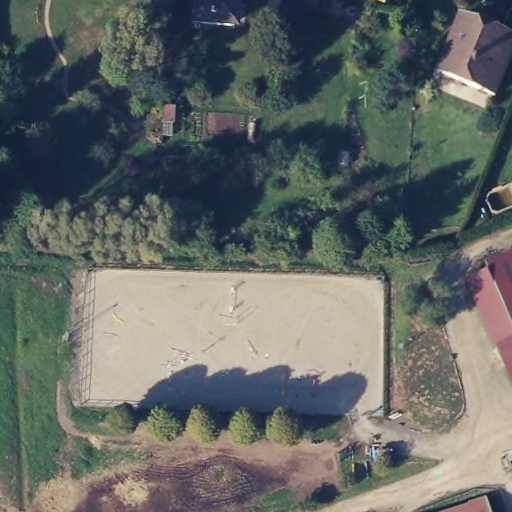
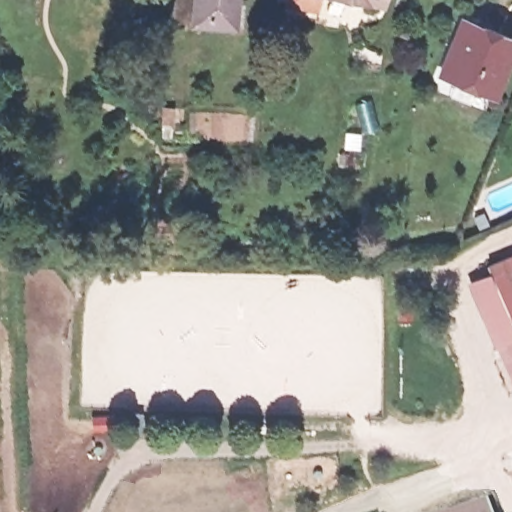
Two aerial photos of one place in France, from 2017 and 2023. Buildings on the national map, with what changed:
unchanged [(187,19),(189,0),(229,0),(227,22),(187,19)]
unchanged [(468,12),(490,22),(512,31),(512,65),(501,92),(460,75),(445,69),(456,40),(465,19),(468,12)]
unchanged [(172,124),(162,123),(163,107),(173,108),(172,124)]
unchanged [(512,319),(487,262),(512,251),(512,319)]
unchanged [(498,375),(493,364),(502,359),(468,282),(491,271),(512,320),(512,380),(507,371),(498,375)]
unchanged [(488,498),(493,512),(447,512),(488,498)]

